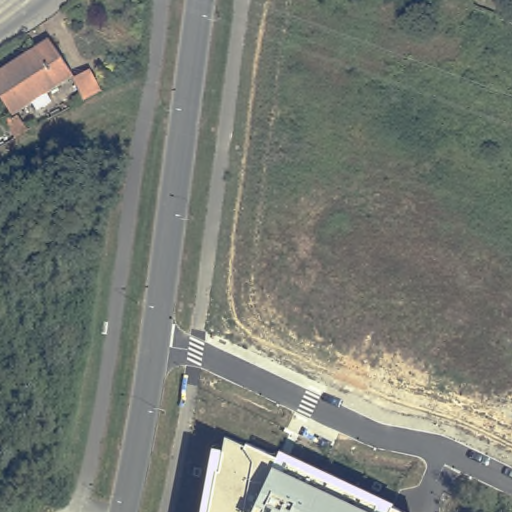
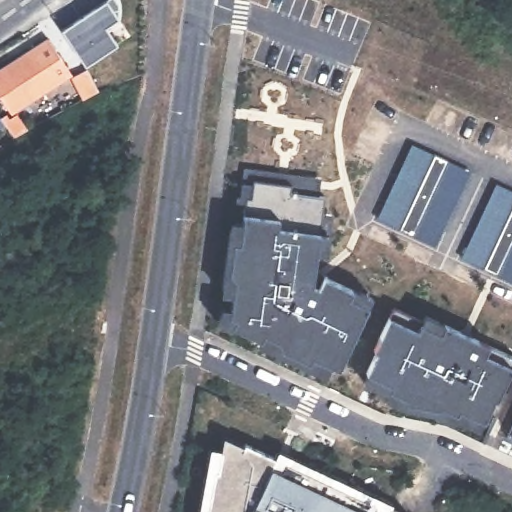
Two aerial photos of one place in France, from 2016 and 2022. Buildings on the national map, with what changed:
unchanged [(35,110),(30,102),(10,114),(0,97),(0,72),(49,40),(71,75),(45,92),(50,101),(35,110)]
unchanged [(88,72),(99,97),(83,104),(72,79),(88,72)]
unchanged [(10,119),(19,115),(28,129),(15,137),(0,118),(6,114),(10,119)]
new [(436,245),(377,218),(410,144),(470,172),(436,245)]
new [(366,305),(370,307),(340,370),(330,366),(325,376),(257,345),(260,340),(219,322),(220,305),(230,306),(231,296),(221,295),(231,219),(241,220),(243,205),(235,203),(236,193),(240,194),(240,182),(241,167),(321,178),(325,197),(322,212),(333,212),(330,235),(328,254),(316,253),(312,285),(319,287),(325,276),(372,296),(366,305)]
new [(495,184),(512,192),(512,282),(460,257),(495,184)]
new [(497,401),(494,400),(480,430),(480,431),(453,420),(453,421),(425,411),(403,408),(383,400),(386,393),(361,382),(375,352),(372,351),(388,316),(418,329),(425,316),(487,344),(483,354),(512,366),(497,401)]
unchanged [(222,449),(224,436),(245,445),(245,443),(275,457),(279,450),(393,503),(391,507),(401,512),(199,512),(211,447),(222,449)]

